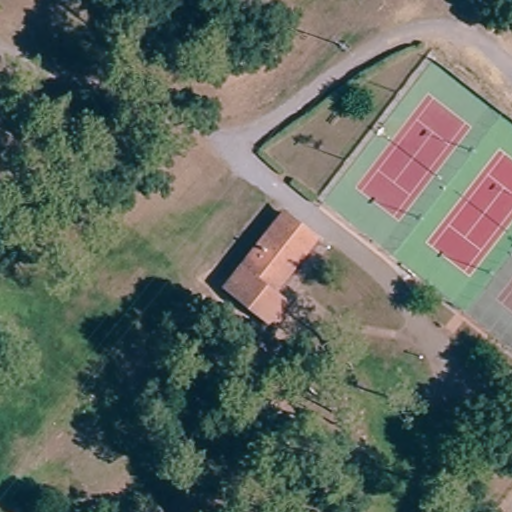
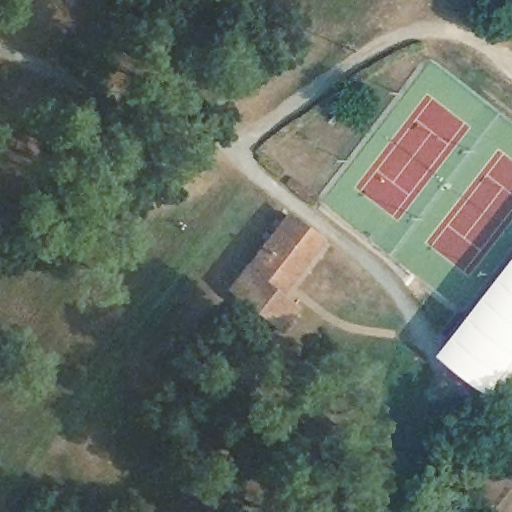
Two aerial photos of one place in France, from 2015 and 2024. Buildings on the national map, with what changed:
unchanged [(280,323),(265,312),(227,284),(280,212),(310,234),(270,287),(278,293),(294,305),(280,323)]
new [(512,375),(496,395),(447,356),(512,270),(512,375)]

